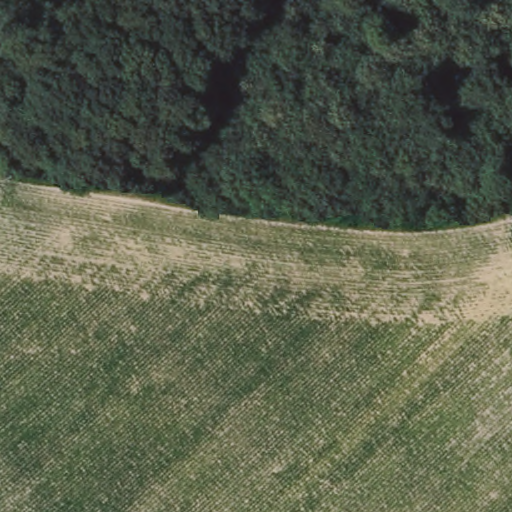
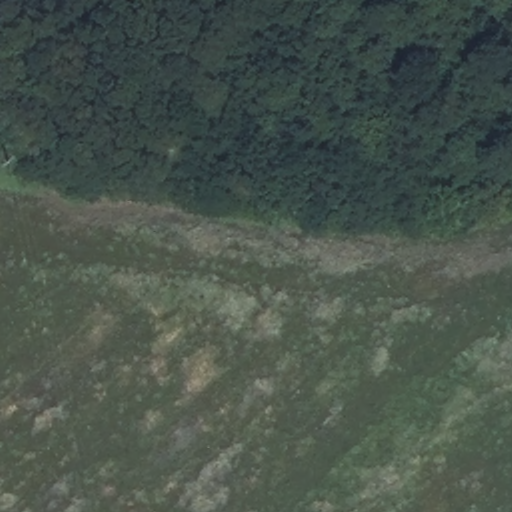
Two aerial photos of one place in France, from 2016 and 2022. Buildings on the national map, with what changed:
[]

